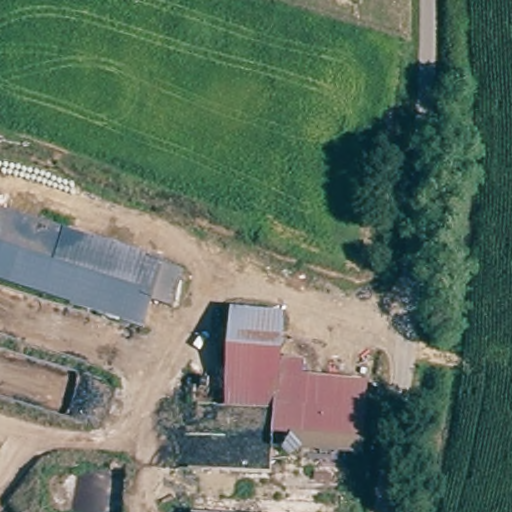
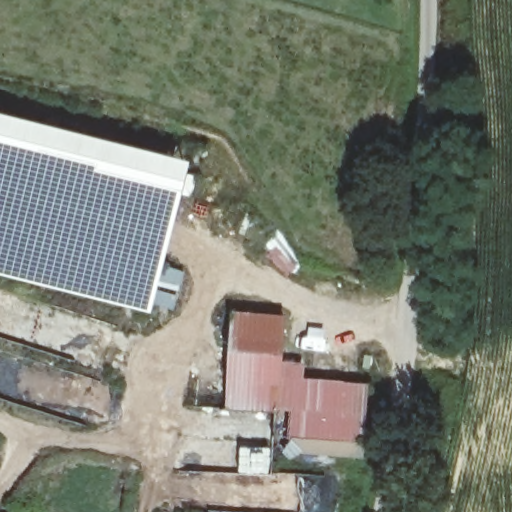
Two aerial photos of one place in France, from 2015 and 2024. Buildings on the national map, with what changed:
new [(152,307),(151,311),(0,273),(0,113),(191,162),(164,265),(186,271),(174,312),(152,307)]
demolished [(186,271),(174,312),(152,307),(164,265),(186,271)]
unchanged [(232,317),(282,323),(281,370),(302,372),(300,389),(365,397),(357,452),(271,439),(272,414),(222,408),(232,317)]
demolished [(287,495),(285,512),(192,512),(196,480),(287,495)]

